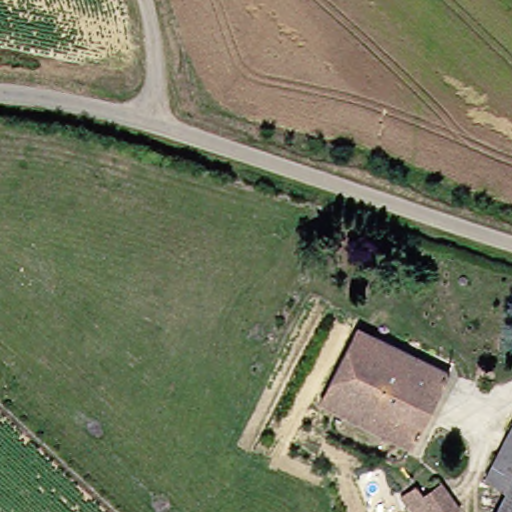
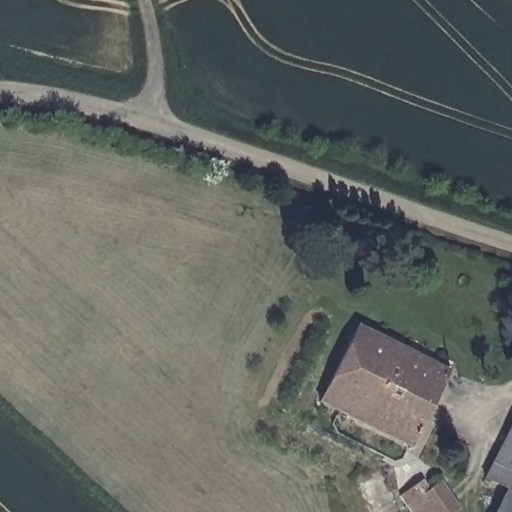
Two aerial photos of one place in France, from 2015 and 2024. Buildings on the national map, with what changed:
unchanged [(402,446),(314,403),(343,339),(348,325),(439,372),(427,395),(416,417),(402,446)]
unchanged [(508,409),(512,410),(512,471),(499,496),(492,493),(473,484),(508,409)]
unchanged [(512,471),(512,512),(492,512),(499,496),(512,471)]
unchanged [(429,512),(406,512),(393,496),(409,485),(429,512)]

